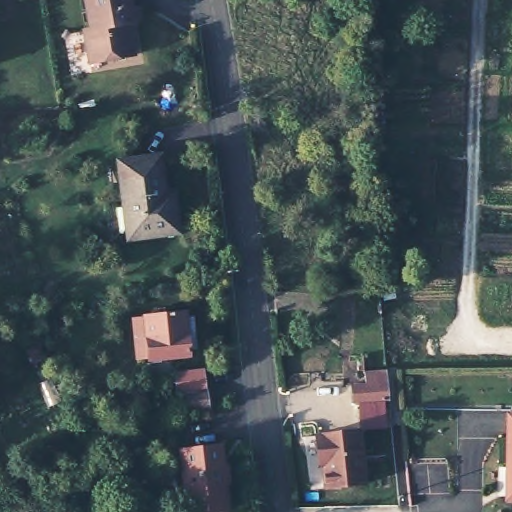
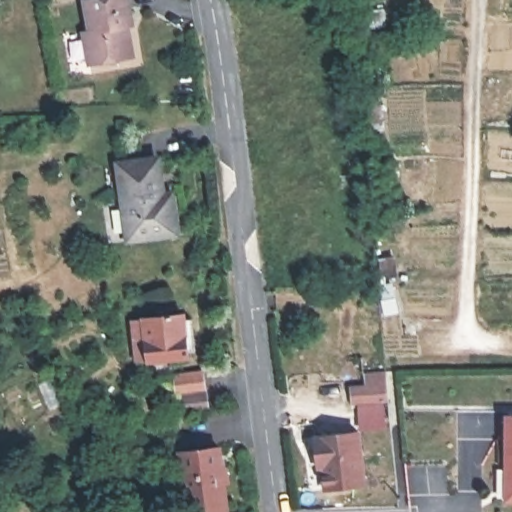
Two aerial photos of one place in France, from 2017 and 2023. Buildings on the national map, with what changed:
unchanged [(88,23),(84,0),(125,0),(127,17),(123,18),(127,50),(88,56),(82,24),(88,23)]
unchanged [(155,153),(161,191),(171,189),(178,227),(129,235),(117,159),(155,153)]
unchanged [(167,307),(172,345),(135,350),(130,313),(167,307)]
unchanged [(186,411),(183,398),(182,392),(177,391),(174,371),(203,366),(208,395),(210,408),(186,411)]
unchanged [(391,402),(353,404),(351,389),(365,388),(365,375),(389,374),(391,402)]
unchanged [(512,412),(512,493),(504,493),(506,411),(512,412)]
unchanged [(358,425),(363,476),(328,478),(322,427),(358,425)]
unchanged [(216,440),(225,500),(185,504),(177,444),(216,440)]

